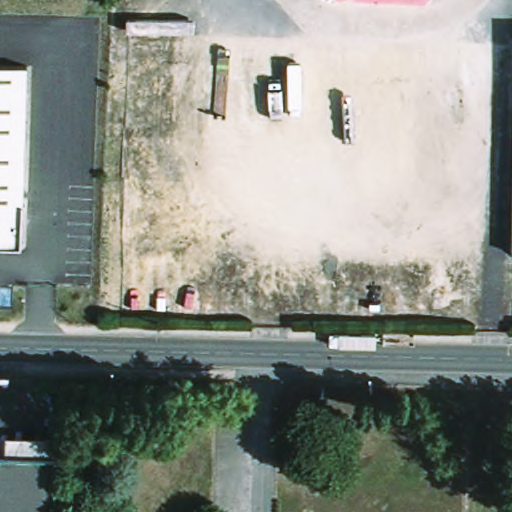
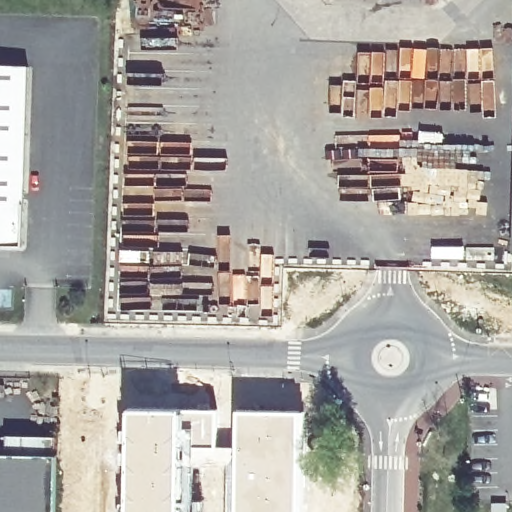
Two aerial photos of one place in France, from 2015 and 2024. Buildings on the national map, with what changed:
unchanged [(27,252),(0,251),(0,70),(32,71),(27,252)]
new [(126,406),(219,408),(219,444),(192,444),(193,512),(124,512),(126,406)]
new [(230,507),(234,472),(234,444),(234,408),(305,409),(302,444),(302,451),(300,475),(299,512),(230,512),(230,507)]
unchanged [(0,454),(12,454),(14,437),(59,439),(58,457),(56,512),(0,512),(0,454)]
new [(192,444),(219,444),(234,444),(234,472),(230,507),(230,512),(193,512),(192,444)]

